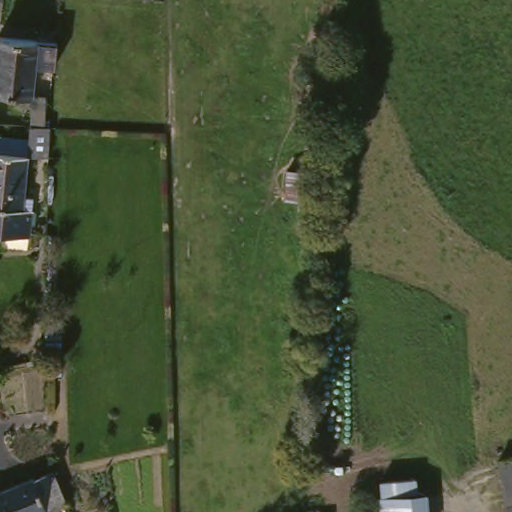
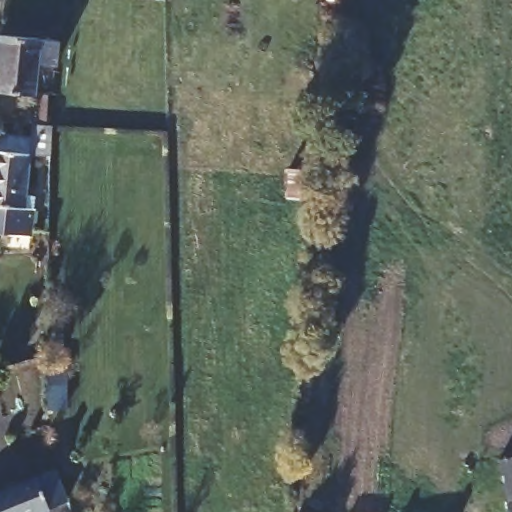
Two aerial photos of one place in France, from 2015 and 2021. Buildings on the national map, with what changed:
unchanged [(28,87),(0,86),(0,31),(55,33),(55,59),(34,57),(32,86),(48,87),(46,121),(25,121),(28,87)]
unchanged [(44,124),(42,150),(27,151),(23,207),(33,207),(32,222),(32,236),(0,235),(0,148),(22,148),(24,123),(44,124)]
unchanged [(512,470),(512,512),(509,512),(499,473),(512,470)]
unchanged [(73,502),(48,512),(16,512),(11,499),(16,497),(14,490),(62,472),(73,502)]
demolished [(382,496),(381,477),(420,476),(421,489),(437,489),(439,512),(378,512),(376,497),(382,496)]
unchanged [(14,490),(16,497),(11,499),(16,512),(0,512),(0,495),(14,490)]

